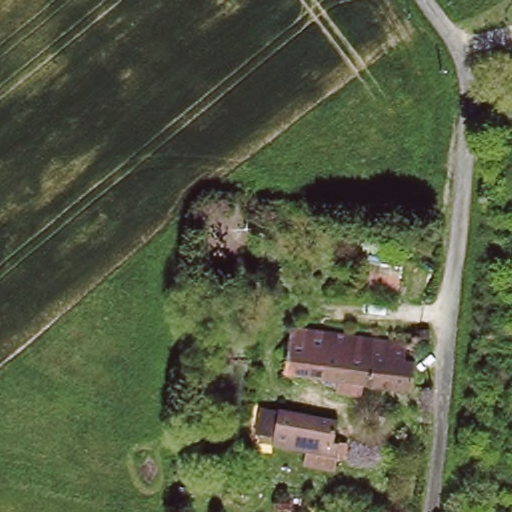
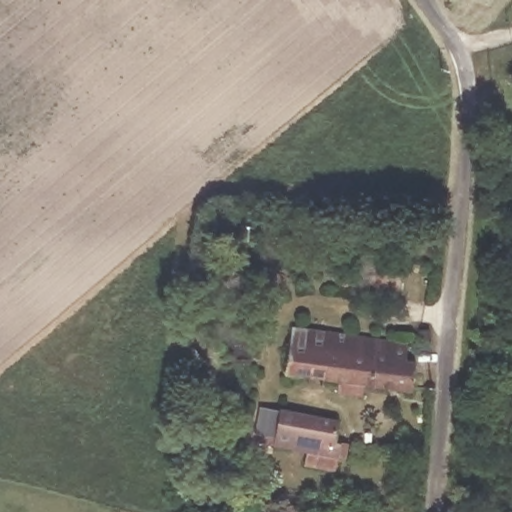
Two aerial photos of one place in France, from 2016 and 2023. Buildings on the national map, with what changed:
unchanged [(405,355),(412,355),(408,386),(284,366),(290,322),(407,340),(405,355)]
unchanged [(295,470),(296,458),(263,453),(264,445),(247,442),(251,417),(267,419),(326,427),(324,447),(328,448),(327,462),(325,475),(295,470)]

